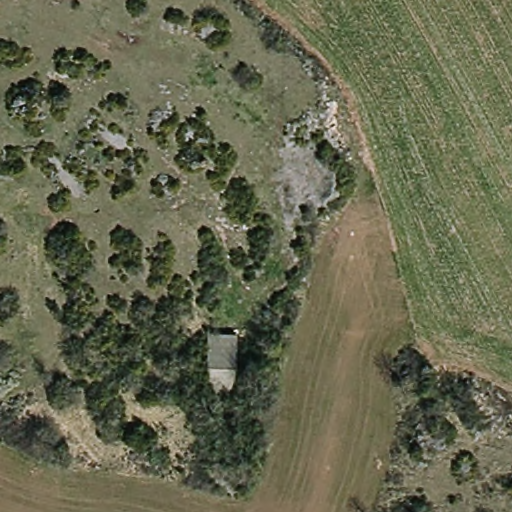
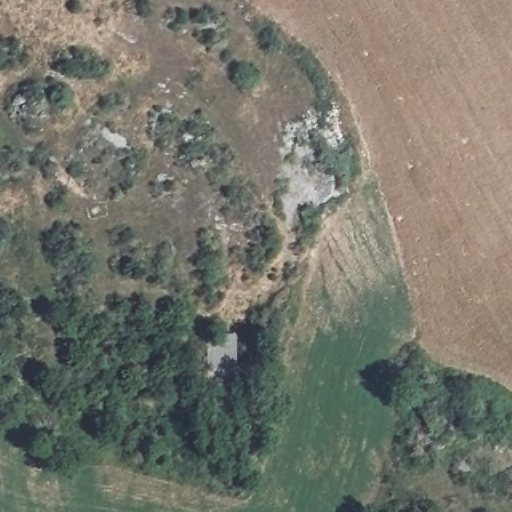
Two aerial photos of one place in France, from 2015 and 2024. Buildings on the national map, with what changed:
unchanged [(232,331),(233,390),(202,389),(200,332),(232,331)]

